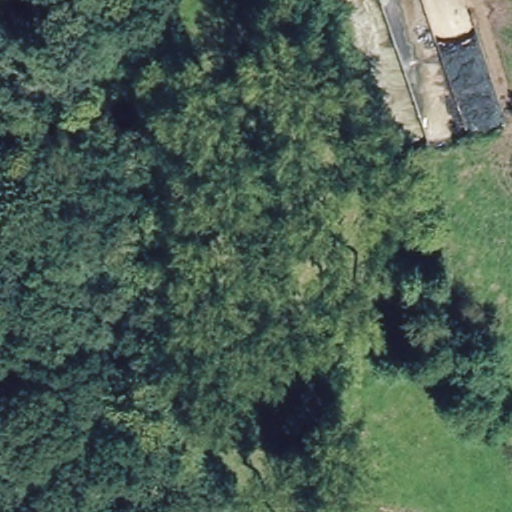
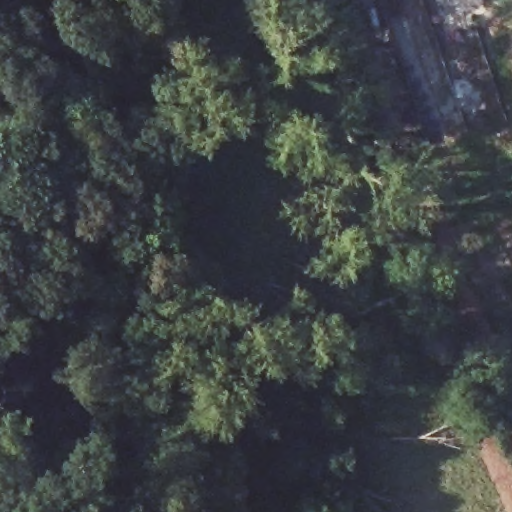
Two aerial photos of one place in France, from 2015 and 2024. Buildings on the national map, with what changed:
[]

